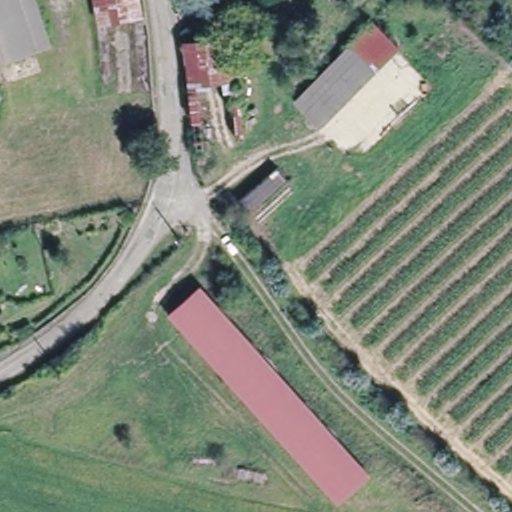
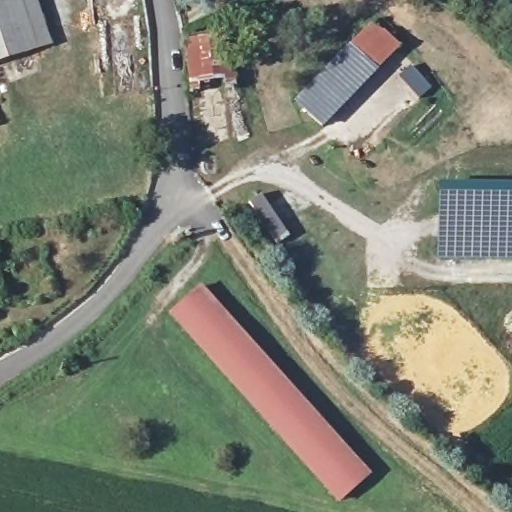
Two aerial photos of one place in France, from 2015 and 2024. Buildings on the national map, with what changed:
unchanged [(0,0),(20,0),(36,43),(0,56),(0,0)]
unchanged [(137,15),(96,17),(95,0),(136,0),(136,2),(137,15)]
unchanged [(372,24),(404,46),(321,126),(292,105),(372,24)]
unchanged [(183,41),(222,33),(232,81),(193,90),(183,41)]
new [(512,191),(512,262),(495,263),(437,260),(436,189),(512,191)]
unchanged [(369,469),(339,497),(172,311),(203,283),(369,469)]

